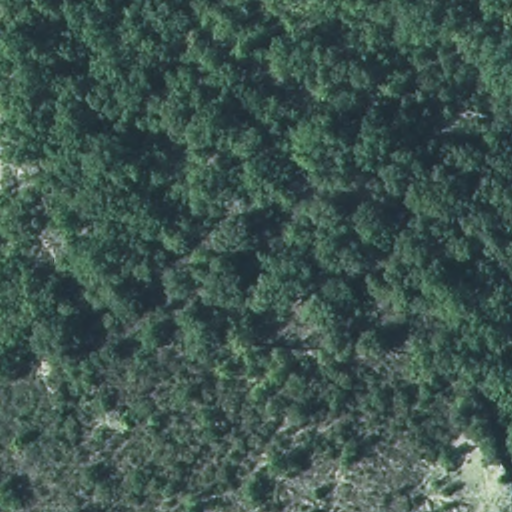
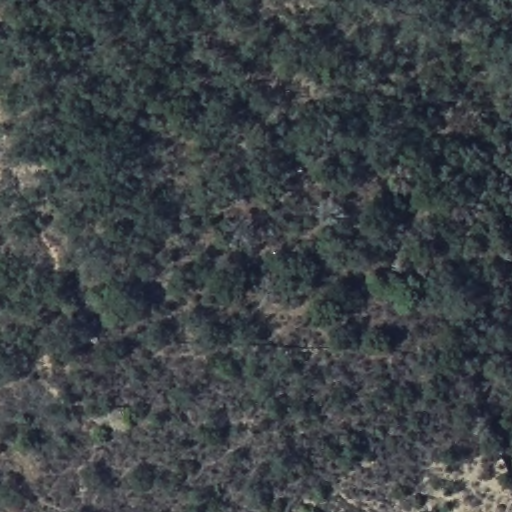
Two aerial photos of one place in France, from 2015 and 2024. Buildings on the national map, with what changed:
unchanged [(106,410),(124,406),(126,412),(130,422),(112,428),(111,418),(106,410)]

